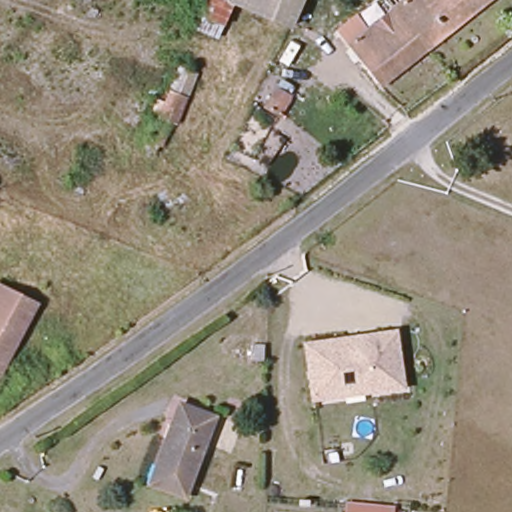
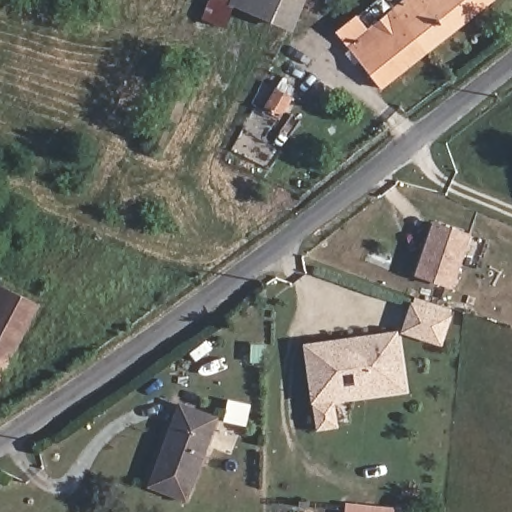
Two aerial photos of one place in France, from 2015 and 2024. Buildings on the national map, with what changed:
unchanged [(228,3),(231,5),(216,42),(187,32),(201,0),(229,0),(228,3)]
unchanged [(289,31),(231,5),(228,3),(229,0),(303,0),(289,31)]
unchanged [(388,18),(391,14),(379,0),(396,0),(402,7),(411,0),(488,0),(494,7),(423,61),(388,18)]
unchanged [(378,96),(334,42),(356,25),(365,35),(388,18),(423,61),(378,96)]
unchanged [(175,80),(194,88),(175,131),(170,130),(162,153),(147,148),(175,80)]
unchanged [(275,93),(291,99),(285,118),(268,111),(275,93)]
new [(438,222),(473,235),(454,286),(420,274),(438,222)]
unchanged [(36,310),(0,379),(0,292),(36,310)]
new [(416,304),(453,316),(444,347),(407,337),(416,304)]
unchanged [(407,390),(311,403),(302,343),(399,331),(407,390)]
unchanged [(209,424),(183,501),(146,487),(172,412),(209,424)]
unchanged [(344,512),(345,501),(397,505),(397,512),(344,512)]

